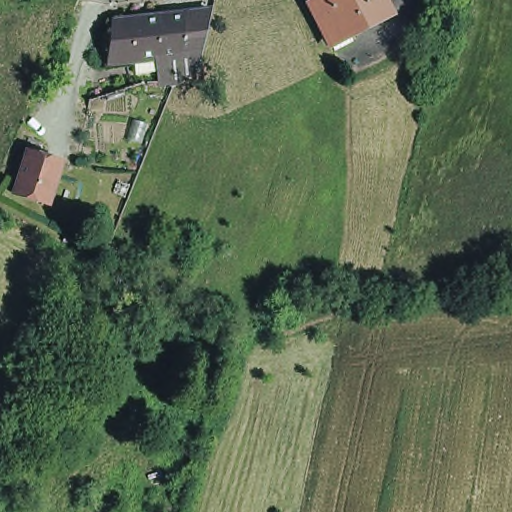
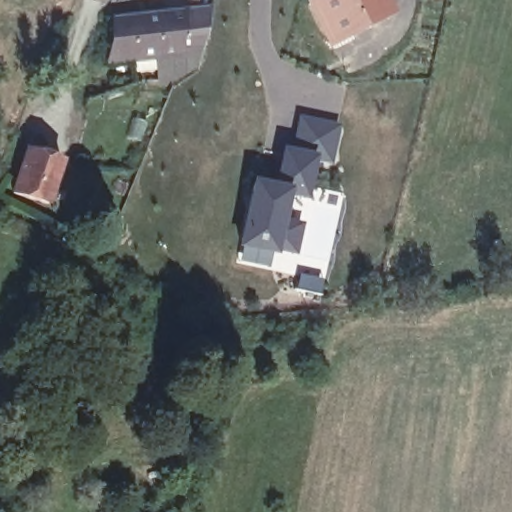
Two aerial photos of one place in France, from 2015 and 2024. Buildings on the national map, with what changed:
unchanged [(329,36),(317,14),(311,0),(384,0),(387,9),(347,29),(350,35),(332,44),(329,36)]
unchanged [(182,50),(111,59),(117,16),(187,8),(205,5),(214,4),(204,47),(187,49),(182,50)]
new [(275,183),(280,143),(295,146),(299,114),(342,121),(338,164),(319,162),(312,201),(292,199),(280,257),(238,250),(251,179),(275,183)]
unchanged [(62,158),(49,210),(7,197),(26,144),(62,158)]
unchanged [(217,371),(194,364),(198,349),(221,355),(217,371)]

